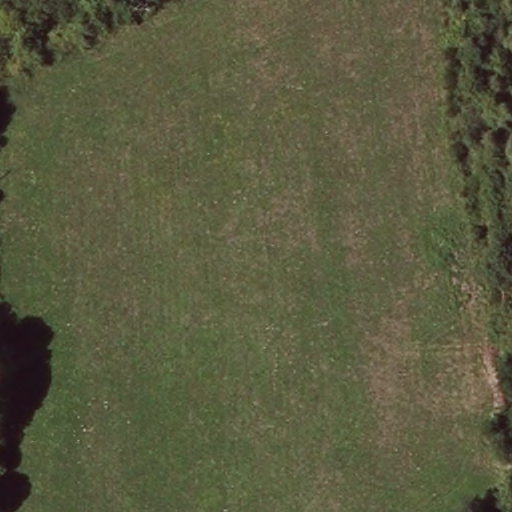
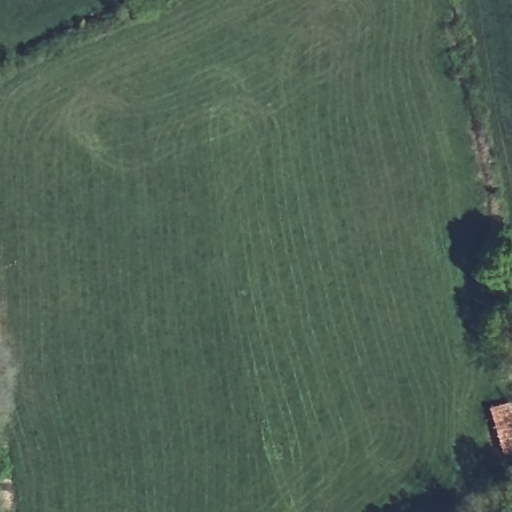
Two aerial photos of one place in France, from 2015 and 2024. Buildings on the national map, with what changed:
new [(512,412),(512,456),(501,458),(489,406),(510,403),(512,412)]

